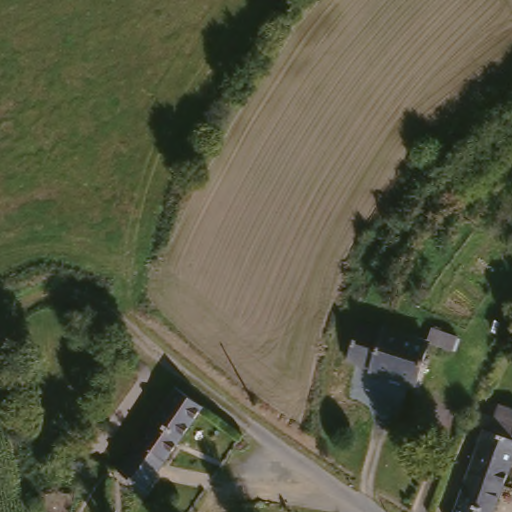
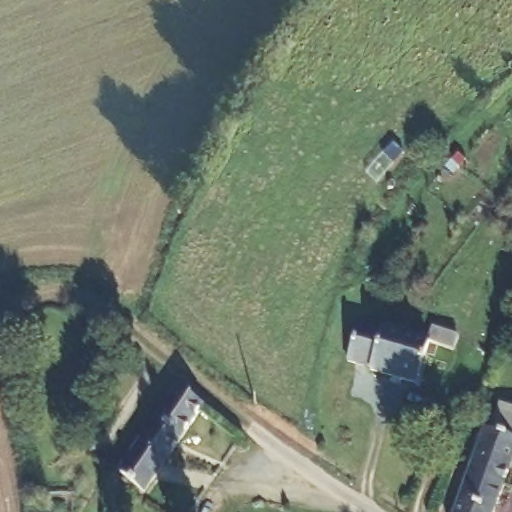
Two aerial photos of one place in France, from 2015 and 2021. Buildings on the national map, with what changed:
unchanged [(382,332),(383,331),(427,343),(432,330),(457,337),(453,349),(453,352),(429,345),(417,386),(371,372),(371,371),(347,362),(359,326),(382,332)]
unchanged [(204,405),(208,408),(149,493),(123,472),(182,389),(204,405)]
unchanged [(495,432),(506,406),(512,408),(512,478),(508,487),(473,475),(490,431),(495,432)]
unchanged [(461,512),(462,507),(466,497),(469,487),(473,476),(473,475),(508,487),(499,512),(461,512)]

